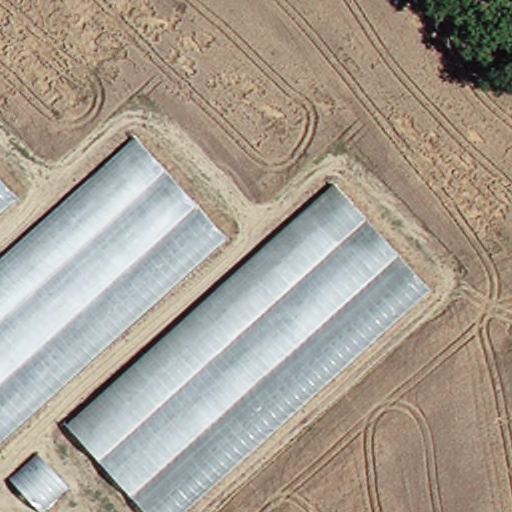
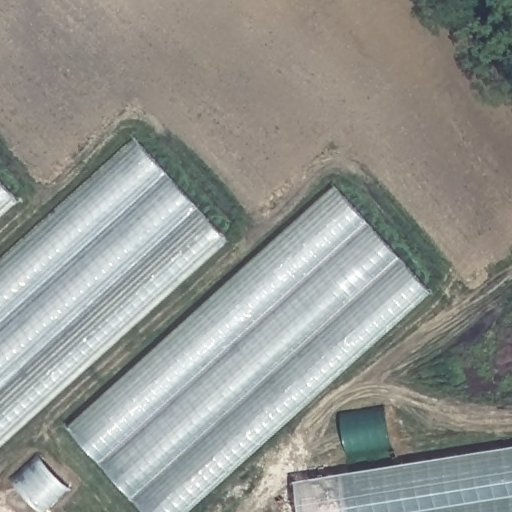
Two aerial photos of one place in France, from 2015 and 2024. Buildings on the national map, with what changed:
unchanged [(223,236),(0,437),(0,264),(137,143),(223,236)]
unchanged [(0,208),(0,183),(12,197),(0,208)]
unchanged [(339,194),(425,287),(177,512),(145,512),(74,434),(339,194)]
new [(294,484),(512,447),(512,512),(299,512),(294,484)]
new [(39,457),(65,485),(39,509),(13,481),(39,457)]

